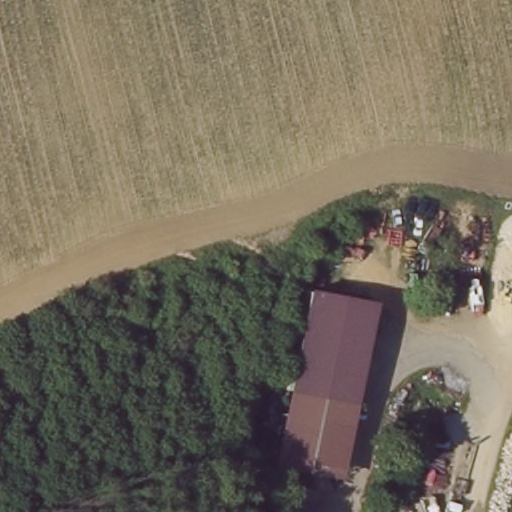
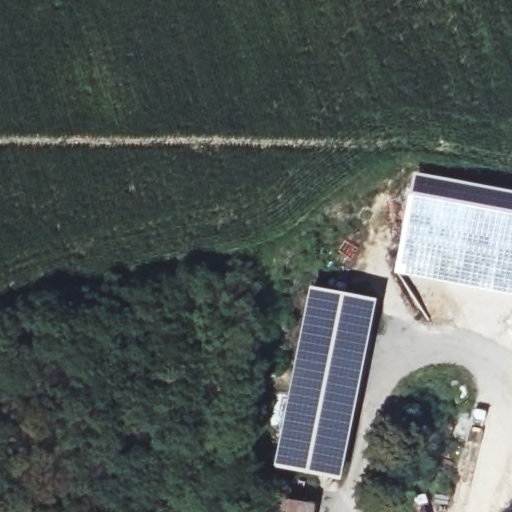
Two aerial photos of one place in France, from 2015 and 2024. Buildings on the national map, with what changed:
new [(415,172),(512,191),(512,297),(392,273),(415,172)]
unchanged [(338,295),(374,301),(346,474),(283,464),(290,417),(310,291),(338,295)]
unchanged [(300,512),(270,512),(271,503),(301,507),(300,512)]

